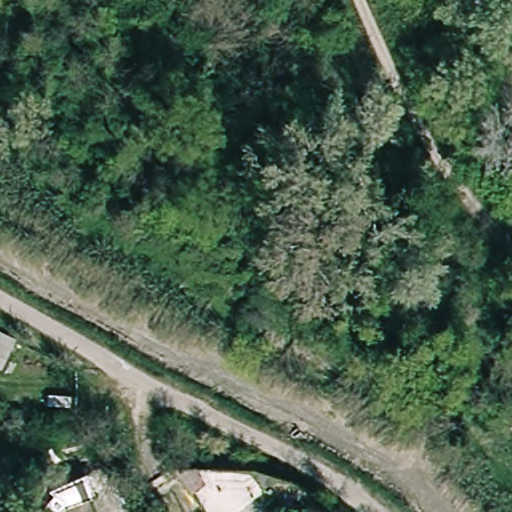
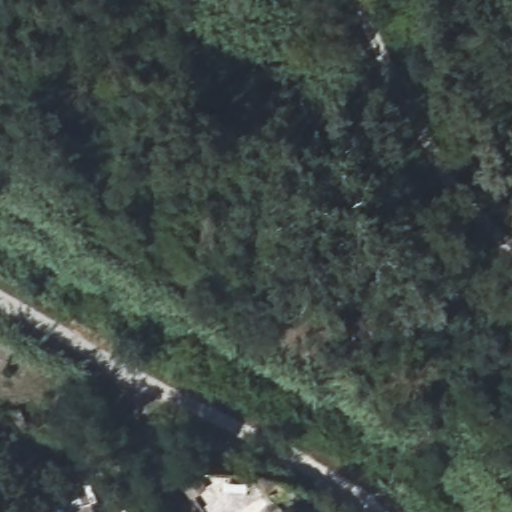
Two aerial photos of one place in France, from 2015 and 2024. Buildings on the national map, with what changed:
[]

